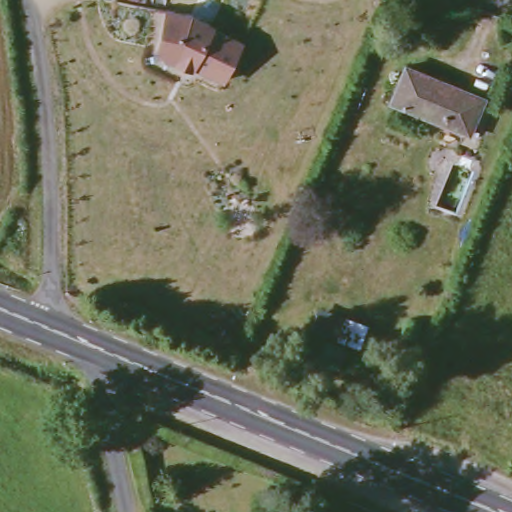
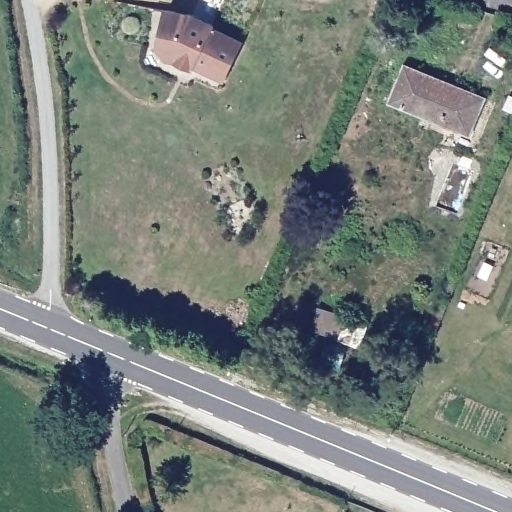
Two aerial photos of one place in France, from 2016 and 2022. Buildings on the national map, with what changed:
unchanged [(195,13),(215,23),(215,25),(244,39),(226,76),(197,61),(195,64),(180,56),(172,54),(162,43),(170,8),(195,13)]
unchanged [(484,96),(470,132),(392,99),(407,61),(484,96)]
unchanged [(355,320),(350,333),(323,324),(328,309),(355,320)]

